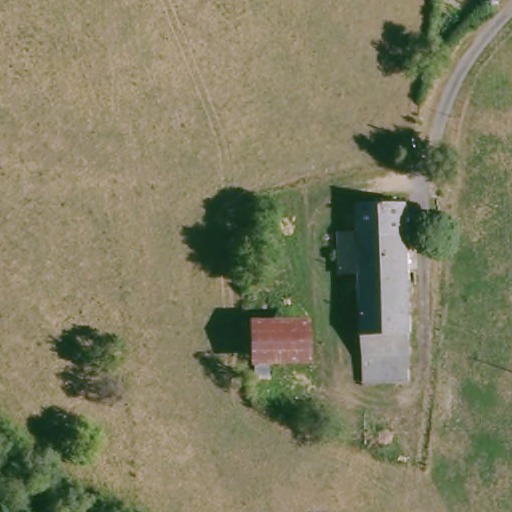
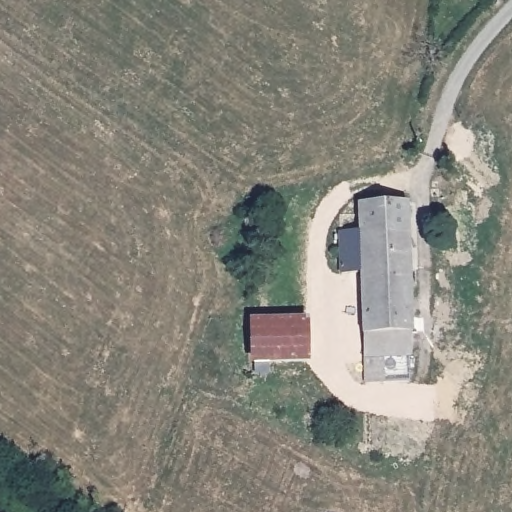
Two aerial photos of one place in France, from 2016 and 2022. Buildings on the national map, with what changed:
unchanged [(412,207),(415,383),(369,383),(365,277),(343,277),(344,236),(364,235),(365,207),(412,207)]
unchanged [(305,318),(305,361),(252,359),(254,318),(305,318)]

